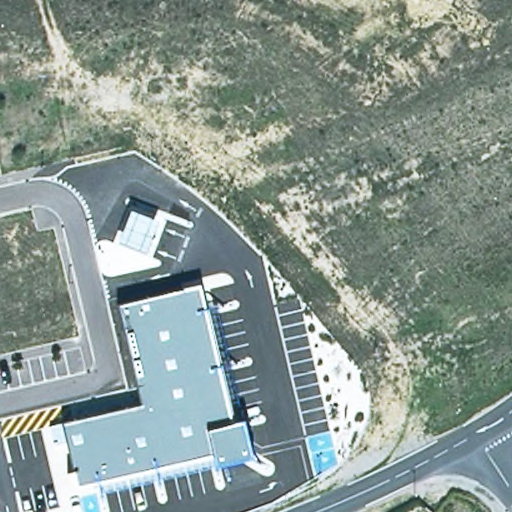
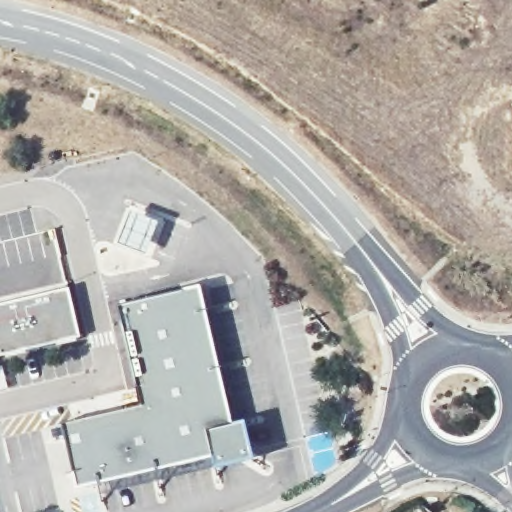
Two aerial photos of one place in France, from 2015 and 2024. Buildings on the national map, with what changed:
unchanged [(131,210),(161,221),(147,256),(117,246),(131,210)]
unchanged [(142,406),(120,304),(202,286),(232,425),(242,423),(252,461),(217,469),(213,458),(78,489),(62,423),(142,406)]
new [(80,337),(0,356),(0,305),(68,289),(80,337)]

